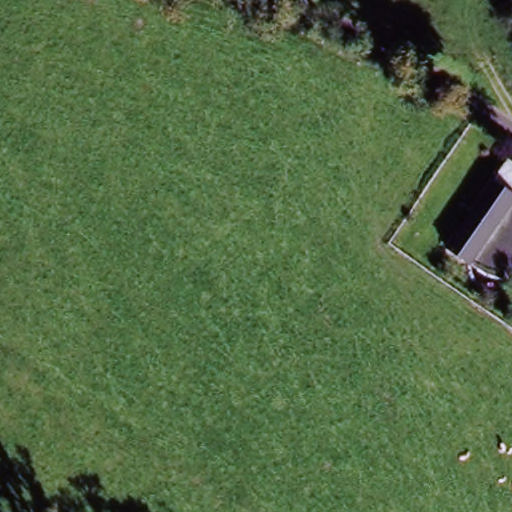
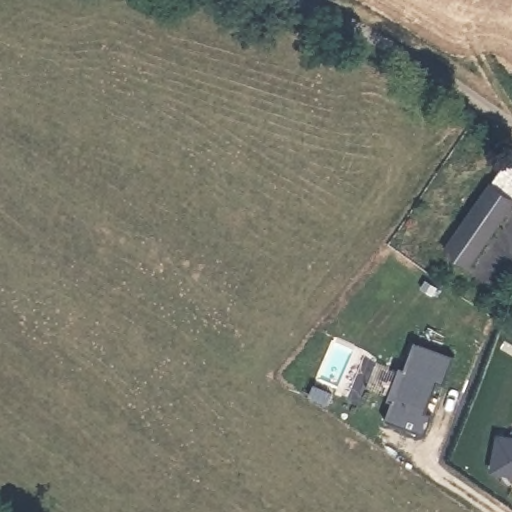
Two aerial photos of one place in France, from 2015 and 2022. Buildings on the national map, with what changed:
unchanged [(503,207),(457,272),(430,254),(488,170),(505,182),(493,200),(503,207)]
new [(455,356),(446,385),(437,382),(425,414),(432,417),(425,434),(385,420),(392,400),(387,398),(397,366),(404,369),(413,340),(455,356)]
new [(507,473),(512,456),(512,474),(507,473)]

